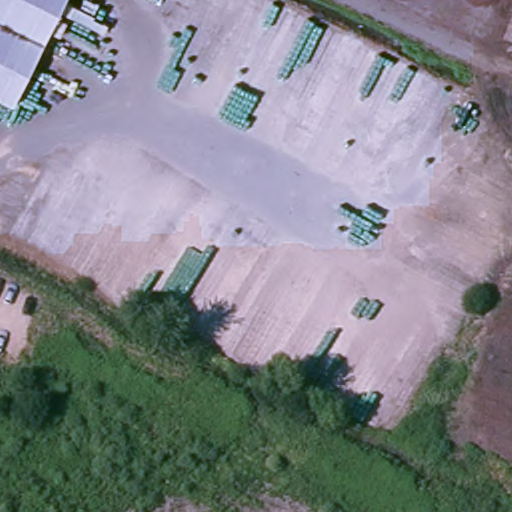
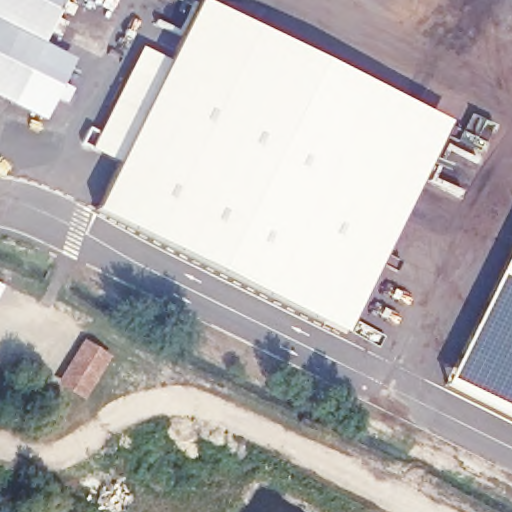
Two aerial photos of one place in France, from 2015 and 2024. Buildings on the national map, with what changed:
unchanged [(14,102),(0,96),(0,0),(62,0),(14,102)]
new [(90,126),(99,130),(141,45),(169,59),(197,0),(205,0),(450,122),(345,334),(187,258),(95,210),(118,162),(81,142),(90,126)]
new [(42,42),(76,60),(46,120),(14,102),(42,42)]
new [(512,415),(461,390),(445,385),(512,248),(512,415)]
new [(85,400),(57,383),(85,338),(113,356),(85,400)]

